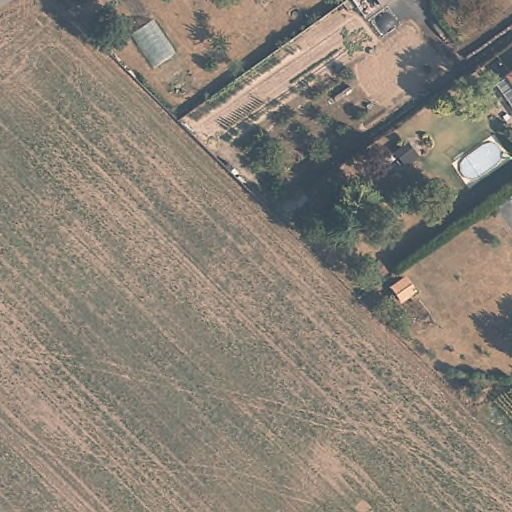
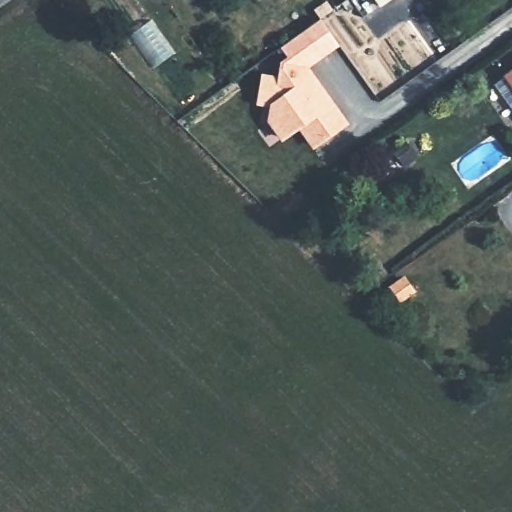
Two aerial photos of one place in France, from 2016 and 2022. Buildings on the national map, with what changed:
new [(279,80),(282,64),(290,57),(282,46),(319,19),(337,45),(305,67),(315,82),(344,124),(313,146),(298,126),(281,138),(269,121),(272,105),(258,102),(262,77),(279,80)]
unchanged [(512,69),(512,80),(507,72),(512,69)]

